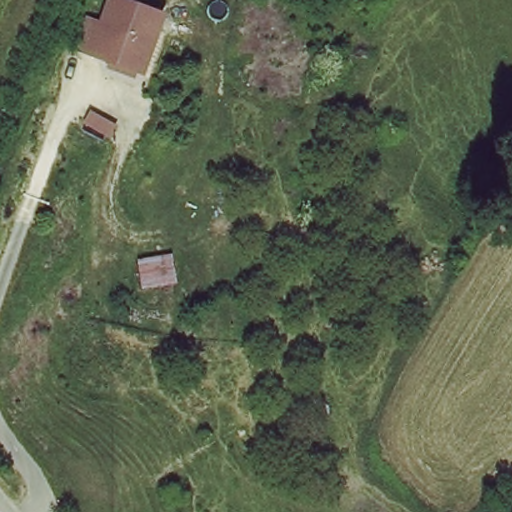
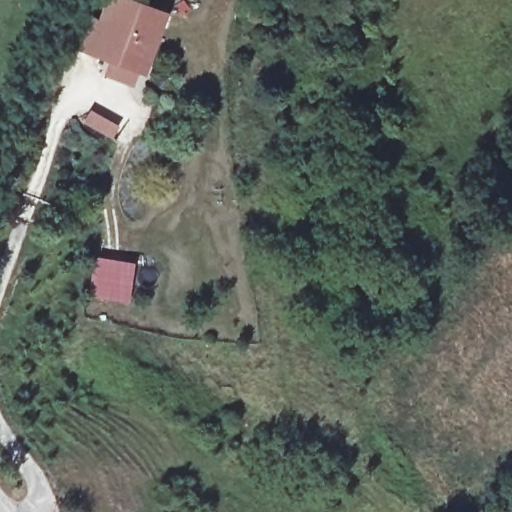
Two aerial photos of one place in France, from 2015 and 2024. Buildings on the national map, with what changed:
unchanged [(138,71),(132,69),(128,75),(97,63),(97,56),(68,46),(79,12),(92,17),(99,0),(126,0),(160,14),(138,71)]
new [(92,256),(135,262),(128,304),(85,296),(92,256)]

